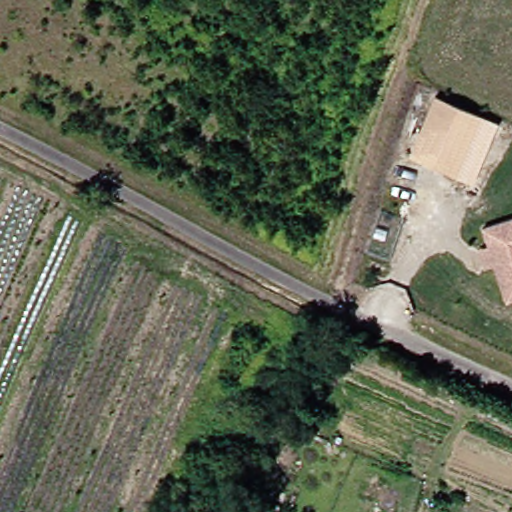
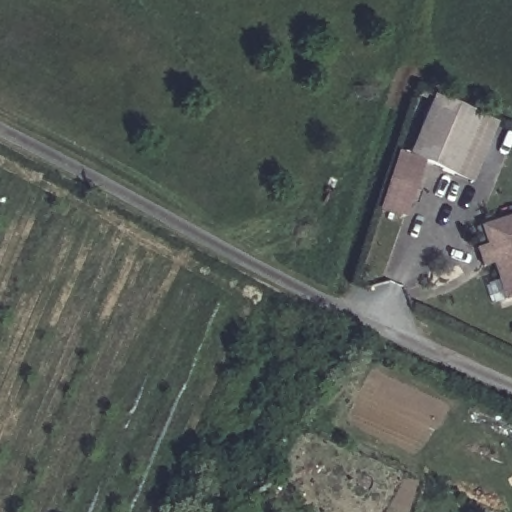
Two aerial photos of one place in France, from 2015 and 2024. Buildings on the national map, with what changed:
unchanged [(462,105),(481,114),(453,172),(413,154),(440,95),(462,105)]
new [(405,219),(378,211),(394,149),(413,154),(424,159),(405,219)]
unchanged [(483,221),(512,214),(512,292),(501,295),(483,221)]

